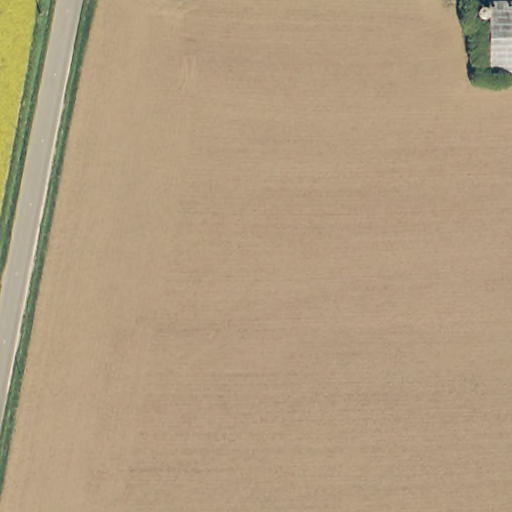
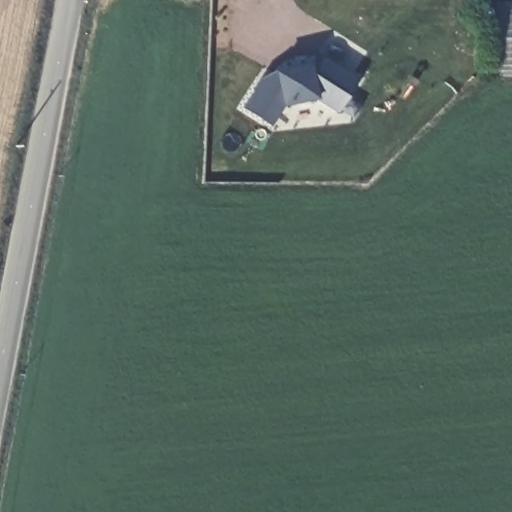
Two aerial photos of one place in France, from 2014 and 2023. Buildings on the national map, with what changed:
unchanged [(512,74),(496,74),(495,4),(512,4),(512,74)]
new [(338,114),(318,99),(288,107),(272,126),(242,108),(261,80),(275,72),(310,63),(310,67),(317,54),(358,80),(338,114)]

